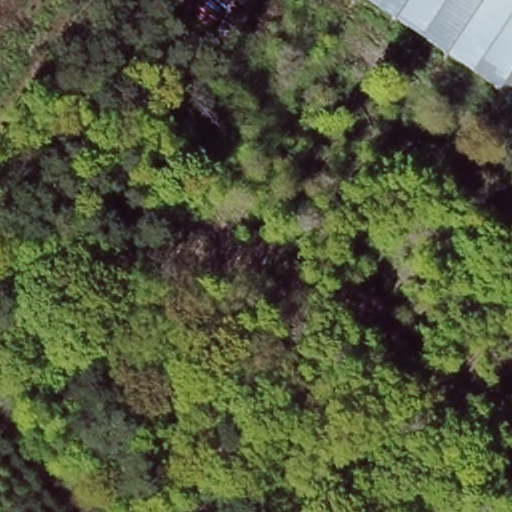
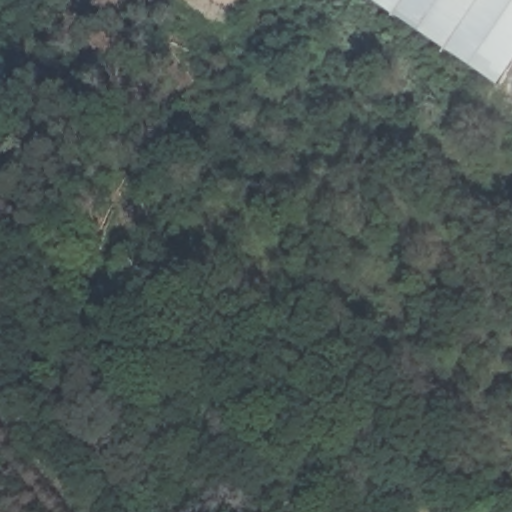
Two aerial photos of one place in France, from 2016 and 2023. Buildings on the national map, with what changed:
unchanged [(359,0),(512,0),(512,66),(493,96),(359,0)]

